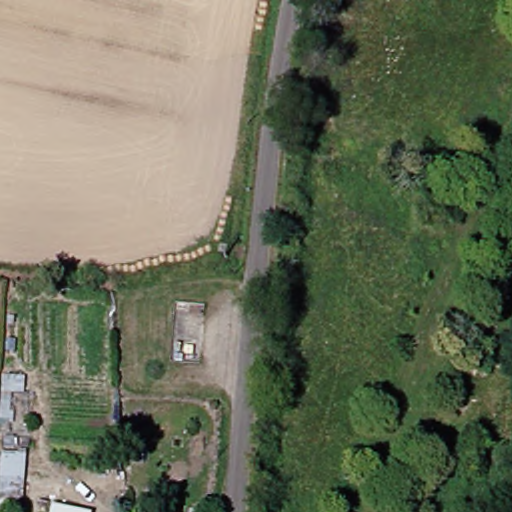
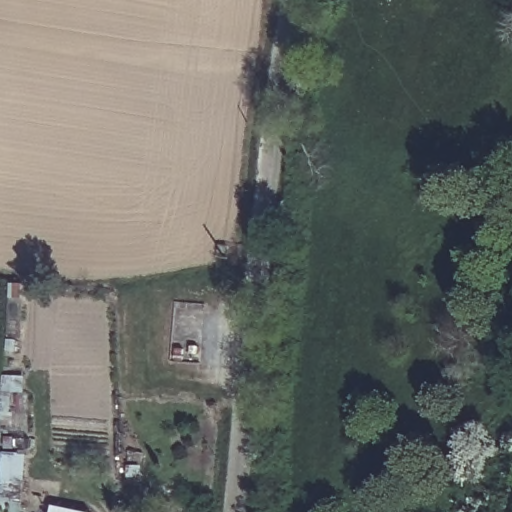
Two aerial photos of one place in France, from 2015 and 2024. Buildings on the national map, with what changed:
unchanged [(16,374),(15,391),(5,390),(4,411),(16,411),(16,451),(20,452),(20,482),(17,482),(16,511),(3,512),(0,512),(0,374),(16,374)]

